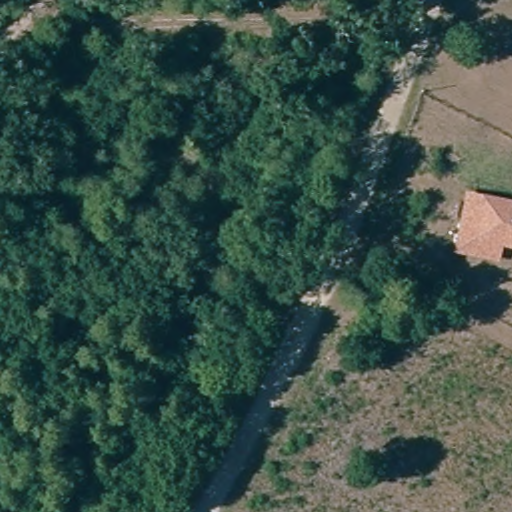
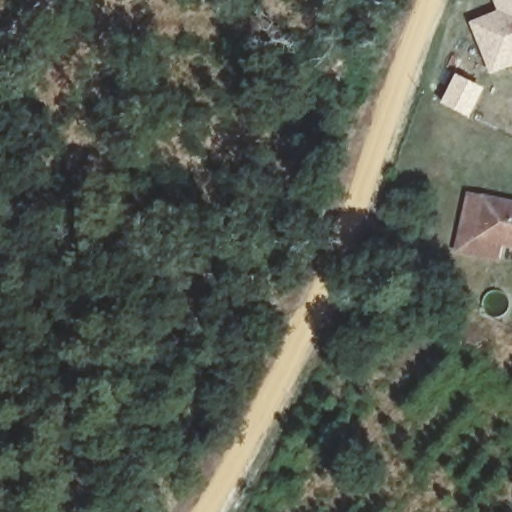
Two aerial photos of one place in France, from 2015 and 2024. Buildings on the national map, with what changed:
new [(470,21),(498,11),(494,0),(512,0),(512,66),(491,75),(470,21)]
unchanged [(501,262),(454,253),(467,192),(512,200),(512,249),(503,248),(501,262)]

